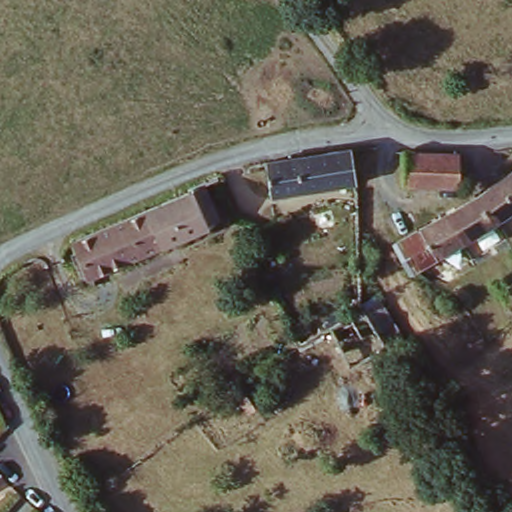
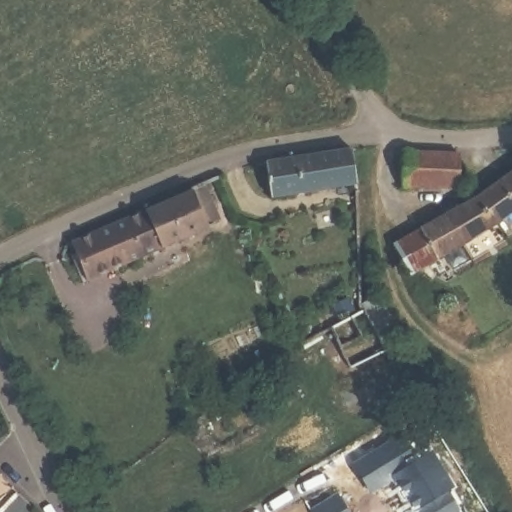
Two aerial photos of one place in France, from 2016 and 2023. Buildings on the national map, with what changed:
unchanged [(271,196),(265,162),(352,146),(357,180),(357,181),(271,196)]
unchanged [(459,186),(406,187),(406,152),(460,154),(459,186)]
unchanged [(398,245),(480,196),(512,174),(512,216),(491,230),(442,259),(415,275),(398,245)]
unchanged [(191,185),(208,230),(84,275),(72,238),(191,185)]
unchanged [(391,325),(367,340),(350,311),(375,296),(391,325)]
new [(412,458),(432,447),(456,488),(449,492),(462,512),(416,512),(393,479),(371,493),(353,464),(398,435),(412,458)]
new [(351,512),(312,512),(311,511),(339,493),(351,512)]

